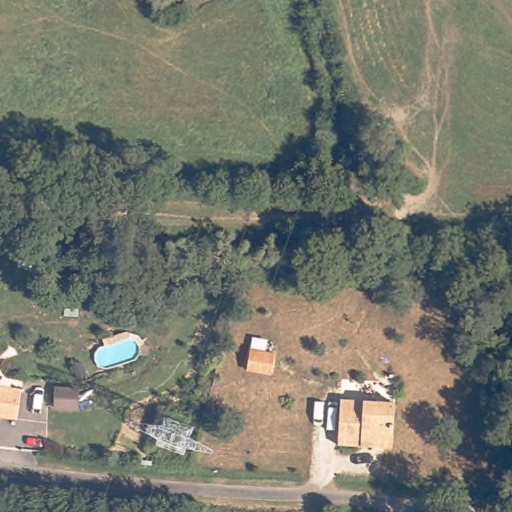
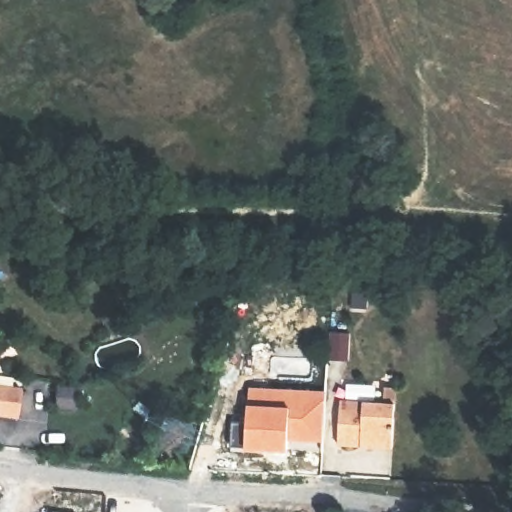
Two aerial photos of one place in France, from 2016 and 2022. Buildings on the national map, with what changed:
new [(333,335),(352,336),(350,363),(332,362),(333,335)]
demolished [(251,351),(276,354),(273,375),(249,372),(251,351)]
unchanged [(20,390),(17,418),(14,421),(0,419),(0,387),(20,390)]
new [(248,389),(325,392),(324,410),(247,406),(248,389)]
unchanged [(338,402),(392,403),(392,448),(338,447),(338,402)]
new [(287,450),(230,447),(231,422),(246,423),(247,406),(324,410),(322,441),(322,452),(287,450)]

